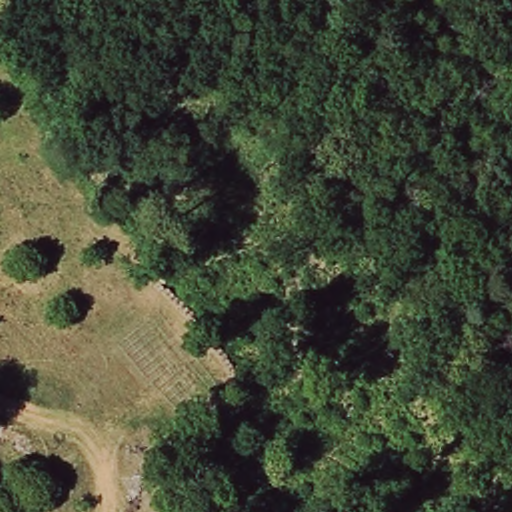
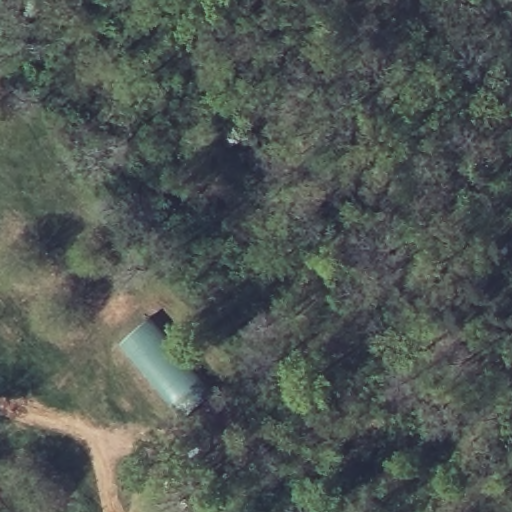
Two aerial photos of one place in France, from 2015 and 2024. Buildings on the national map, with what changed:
new [(154,318),(180,347),(174,352),(212,396),(197,408),(184,393),(175,400),(125,342),(142,327),(154,318)]

